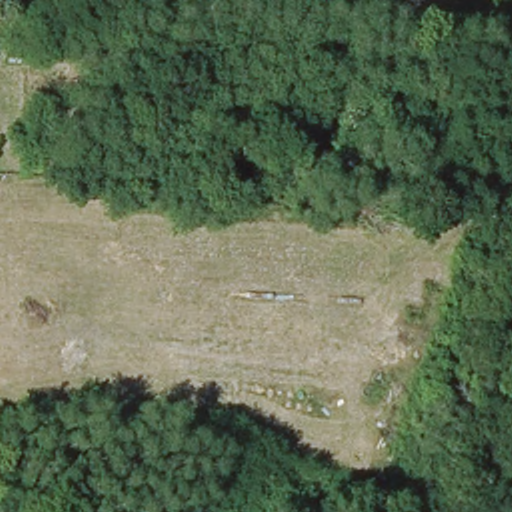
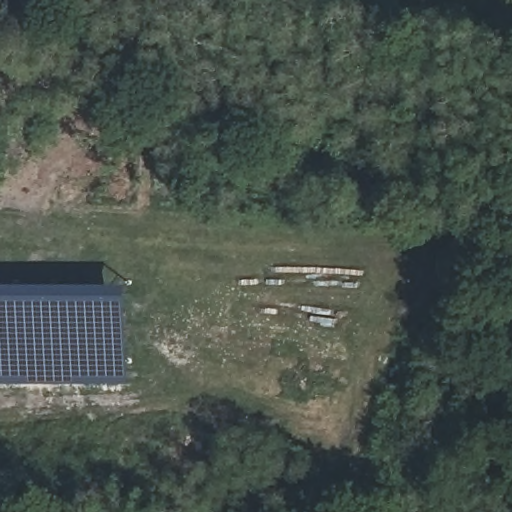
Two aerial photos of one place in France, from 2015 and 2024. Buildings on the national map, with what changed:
new [(0,383),(0,281),(128,282),(129,382),(0,383)]

